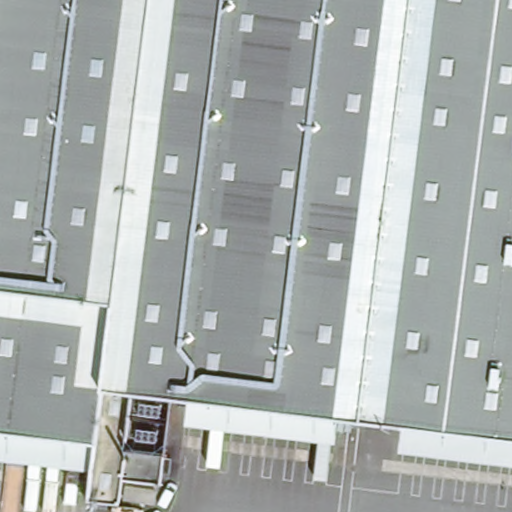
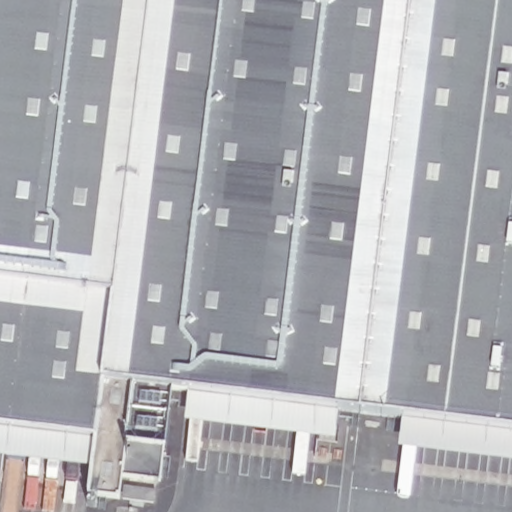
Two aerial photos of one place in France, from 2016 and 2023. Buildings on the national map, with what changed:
unchanged [(512,431),(171,390),(166,444),(130,439),(123,495),(93,491),(96,434),(0,423),(0,0),(512,0),(512,431)]

